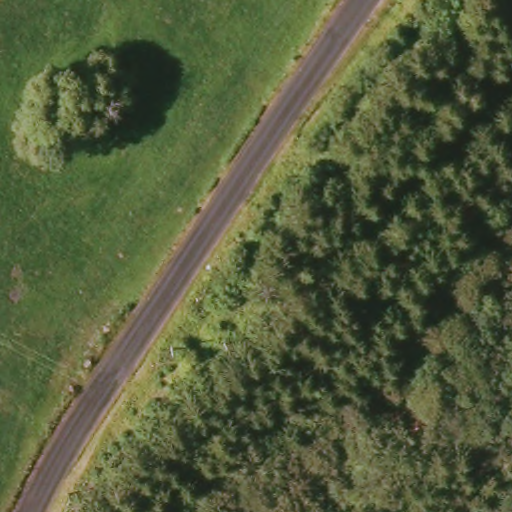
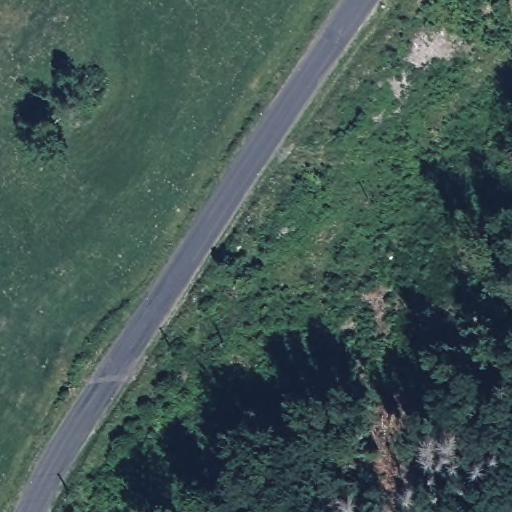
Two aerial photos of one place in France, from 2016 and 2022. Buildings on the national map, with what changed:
unchanged [(201,305),(196,316),(188,312),(193,300),(201,305)]

